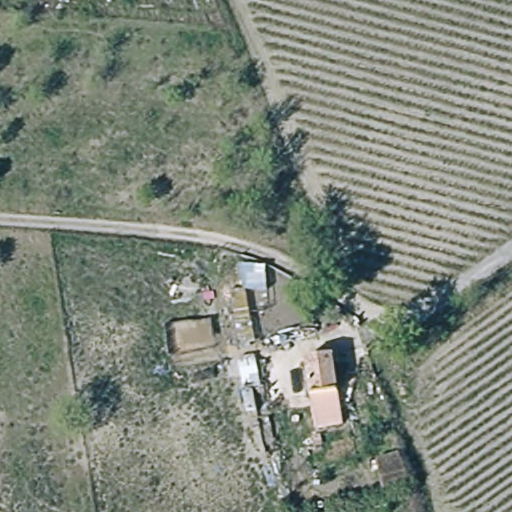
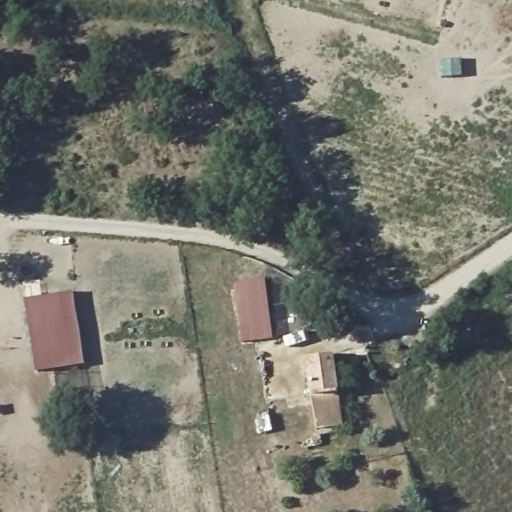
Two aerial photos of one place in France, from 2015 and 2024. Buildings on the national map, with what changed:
unchanged [(267,293),(244,292),(256,344),(239,347),(222,272),(239,269),(239,265),(266,267),(267,293)]
new [(23,299),(71,290),(85,363),(35,373),(23,299)]
unchanged [(338,392),(341,425),(315,429),(309,395),(304,360),(333,356),(338,392)]

